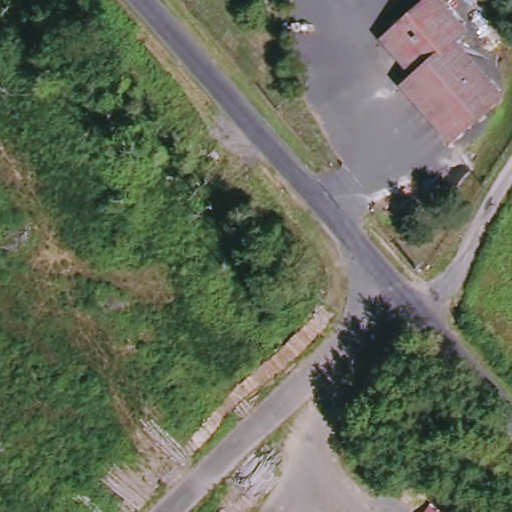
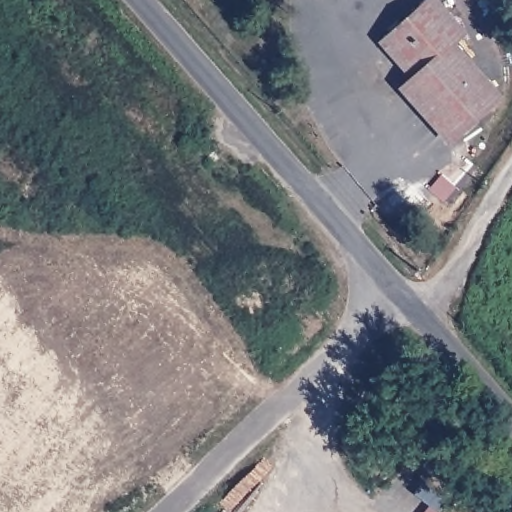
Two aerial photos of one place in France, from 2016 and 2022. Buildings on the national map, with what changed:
unchanged [(447,42),(493,96),(443,140),(396,86),(407,74),(376,40),(385,33),(380,26),(393,16),(398,20),(421,0),(428,0),(457,32),(447,42)]

